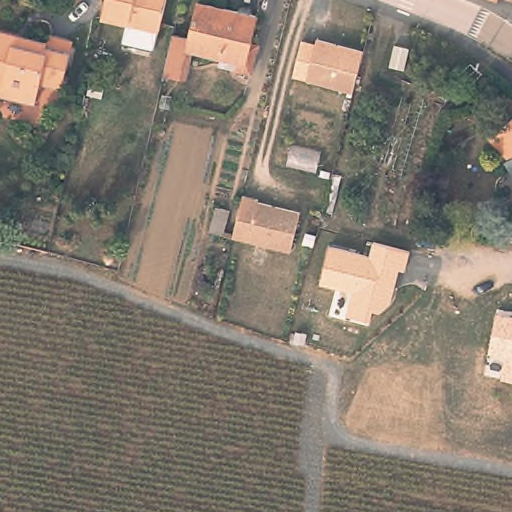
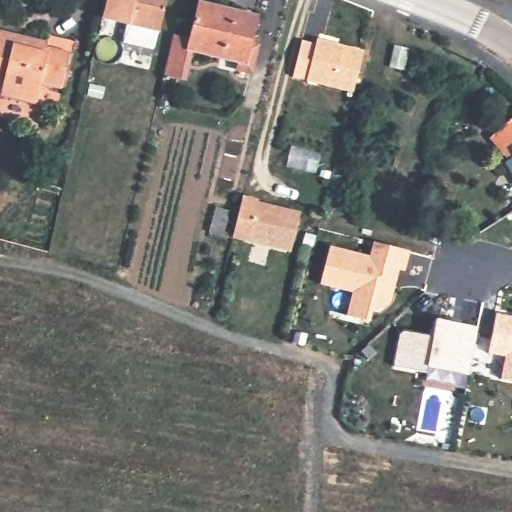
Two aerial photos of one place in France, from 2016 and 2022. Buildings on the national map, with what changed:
unchanged [(158,28),(102,14),(105,0),(165,0),(158,28)]
unchanged [(493,4),(483,0),(495,0),(493,4)]
unchanged [(512,3),(504,0),(512,0),(512,3)]
unchanged [(163,77),(173,36),(188,40),(195,4),(253,17),(248,43),(255,45),(250,74),(234,70),(234,62),(192,52),(185,81),(163,77)]
unchanged [(39,96),(3,87),(5,79),(0,77),(0,31),(29,39),(30,35),(49,40),(52,27),(75,33),(63,82),(43,77),(39,96)]
unchanged [(361,51),(351,93),(306,82),(315,39),(361,51)]
unchanged [(512,118),(512,155),(507,159),(490,137),(512,118)]
unchanged [(507,159),(512,155),(512,173),(503,161),(507,159)]
unchanged [(297,211),(289,253),(231,237),(210,231),(214,207),(236,212),(242,196),(297,211)]
unchanged [(320,286),(329,246),(368,255),(373,241),(411,250),(407,270),(400,269),(393,303),(382,313),(374,311),(372,320),(345,315),(352,292),(320,286)]
unchanged [(504,357),(488,354),(496,312),(512,315),(512,381),(500,378),(504,357)]
new [(399,333),(404,330),(431,335),(435,318),(480,327),(471,375),(428,367),(428,372),(393,366),(399,333)]

